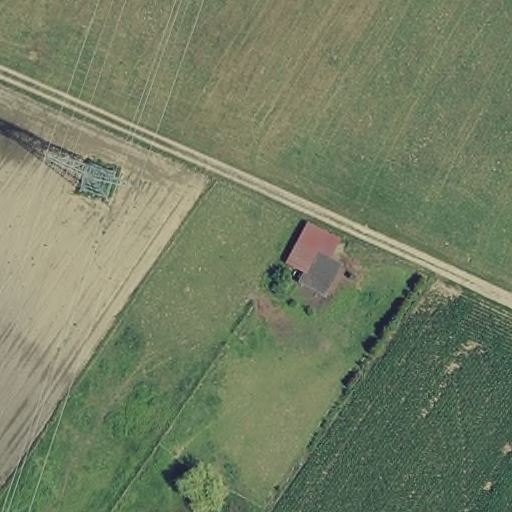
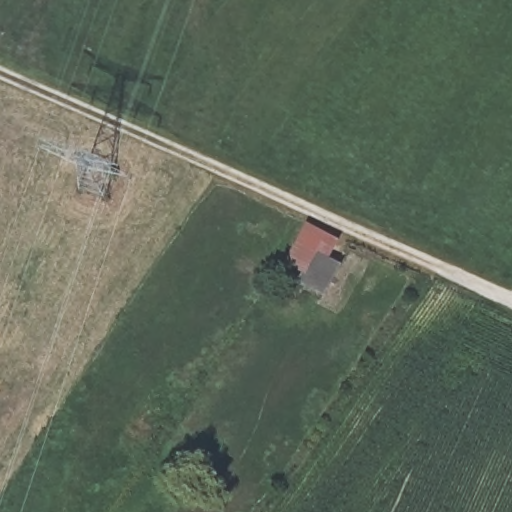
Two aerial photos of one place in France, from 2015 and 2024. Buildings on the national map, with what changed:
unchanged [(341,237),(332,255),(344,262),(325,301),(293,288),(298,278),(284,270),(306,222),(341,237)]

